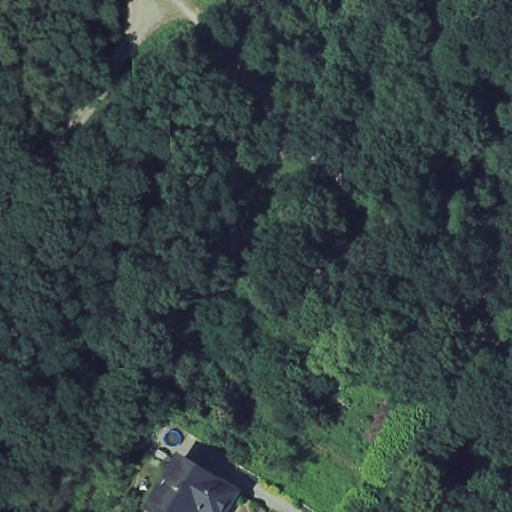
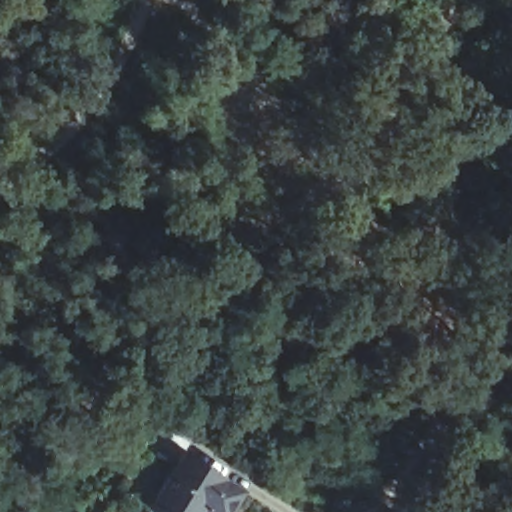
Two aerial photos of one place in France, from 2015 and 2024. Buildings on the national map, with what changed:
unchanged [(471,79),(477,70),(482,63),(488,68),(484,74),(488,77),(481,87),(471,79)]
unchanged [(175,463),(191,473),(233,498),(224,512),(145,512),(168,475),(175,463)]

